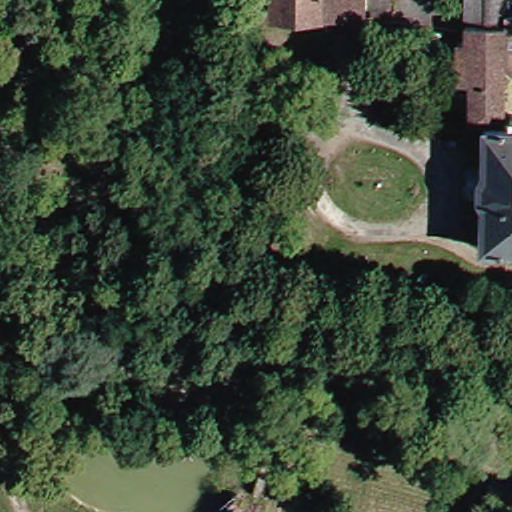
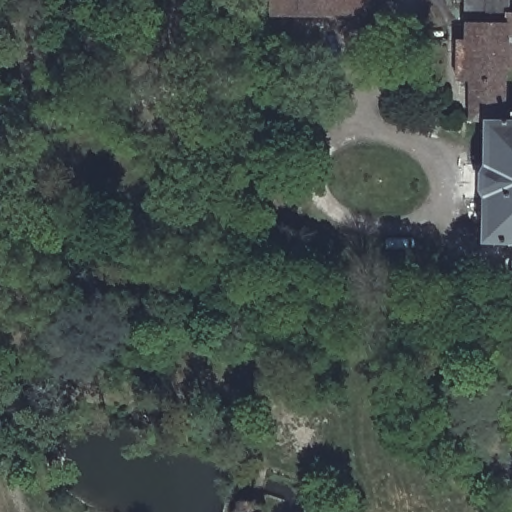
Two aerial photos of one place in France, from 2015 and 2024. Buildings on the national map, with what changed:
unchanged [(283,2),(283,0),(376,0),(376,15),(282,16),(283,2)]
unchanged [(512,243),(493,243),(496,203),(489,197),(490,169),(496,159),(496,125),(482,124),(481,80),(469,80),(468,38),(477,38),(477,0),(512,0),(512,243)]
unchanged [(269,512),(244,512),(237,511),(243,484),(274,491),(269,512)]

